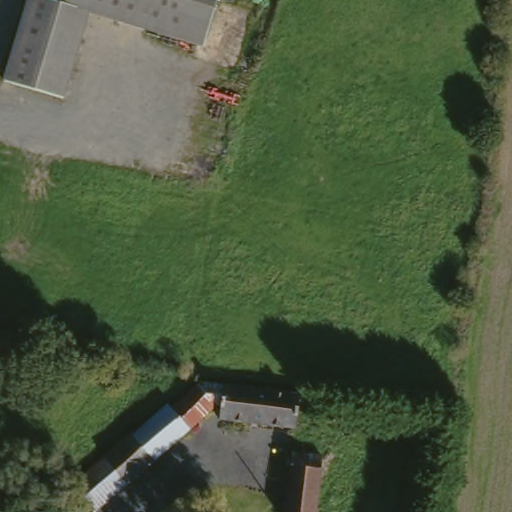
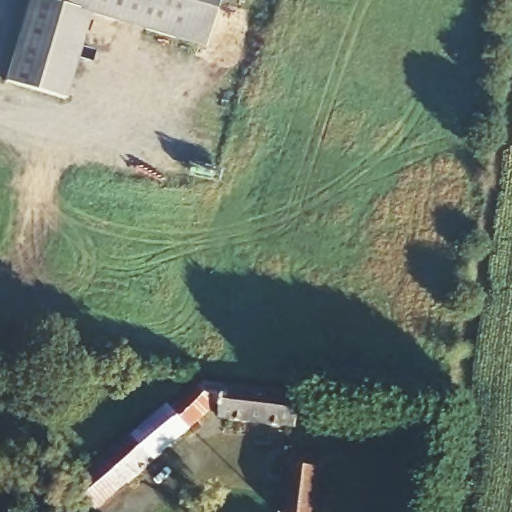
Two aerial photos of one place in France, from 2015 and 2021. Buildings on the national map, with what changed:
unchanged [(7,79),(32,0),(56,0),(63,3),(93,12),(65,98),(7,79)]
unchanged [(93,12),(63,3),(64,0),(223,0),(207,49),(93,12)]
unchanged [(248,391),(305,399),(309,400),(305,432),(229,419),(230,412),(222,411),(129,493),(104,466),(141,432),(144,434),(178,403),(182,408),(205,384),(248,391)]
unchanged [(335,465),(329,512),(295,512),(302,461),(335,465)]
unchanged [(104,466),(129,493),(108,512),(97,512),(87,501),(77,490),(104,466)]

